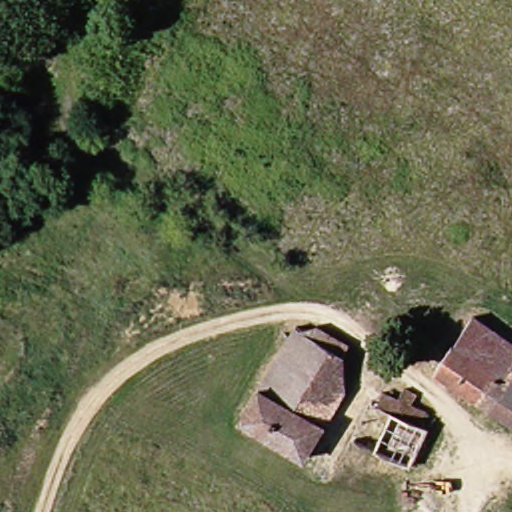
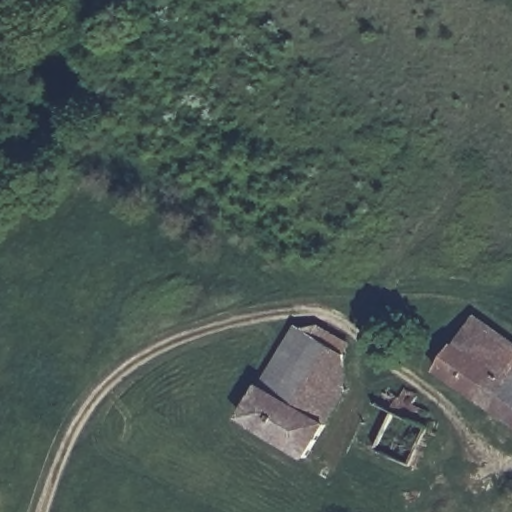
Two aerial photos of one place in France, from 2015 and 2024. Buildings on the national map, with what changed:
unchanged [(306,458),(245,418),(307,314),(352,343),(343,356),(345,400),(325,429),(306,458)]
unchanged [(438,371),(477,315),(512,339),(512,422),(438,371)]
unchanged [(375,406),(382,389),(402,397),(406,384),(421,390),(417,403),(438,411),(412,478),(387,468),(383,479),(353,465),(360,447),(375,406)]

